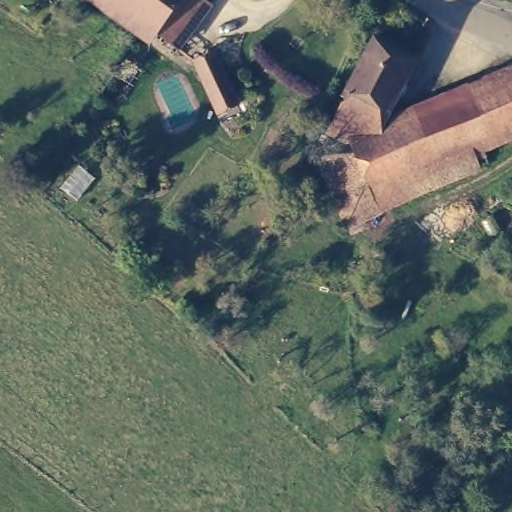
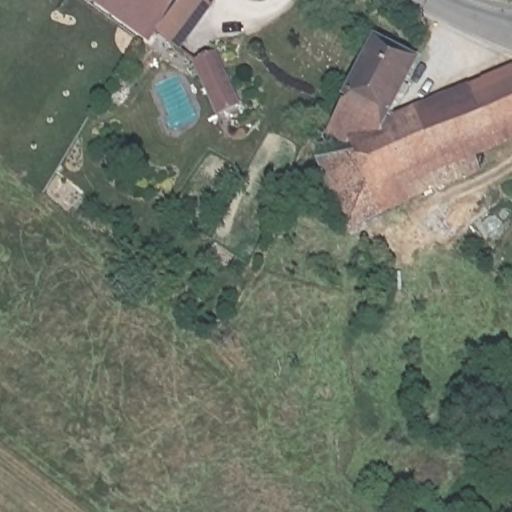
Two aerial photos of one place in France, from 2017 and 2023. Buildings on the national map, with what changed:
unchanged [(207,14),(185,49),(110,0),(213,0),(215,1),(207,14)]
unchanged [(342,95),(373,37),(413,59),(382,115),(342,95)]
unchanged [(193,59),(215,50),(238,103),(215,112),(193,59)]
unchanged [(512,66),(512,73),(376,133),(374,131),(334,110),(342,95),(382,115),(510,62),(512,66)]
unchanged [(485,167),(412,199),(403,180),(375,192),(352,143),(376,133),(512,73),(512,144),(480,158),(485,167)]

